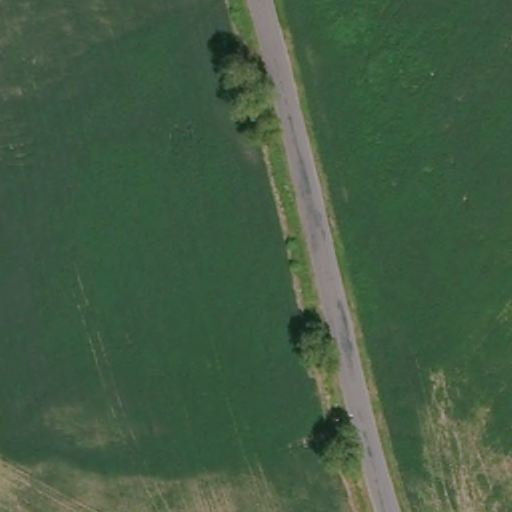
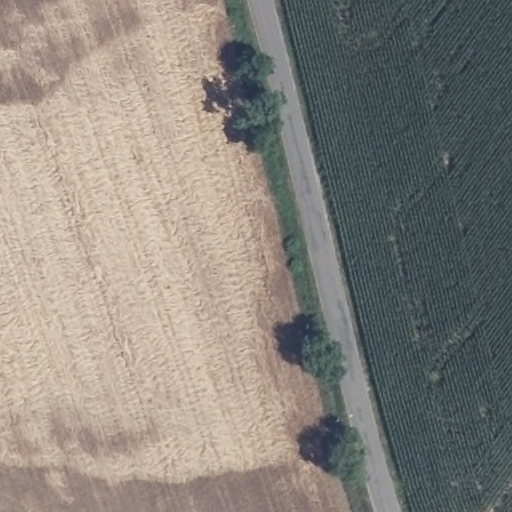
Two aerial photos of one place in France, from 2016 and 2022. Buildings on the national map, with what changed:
[]

